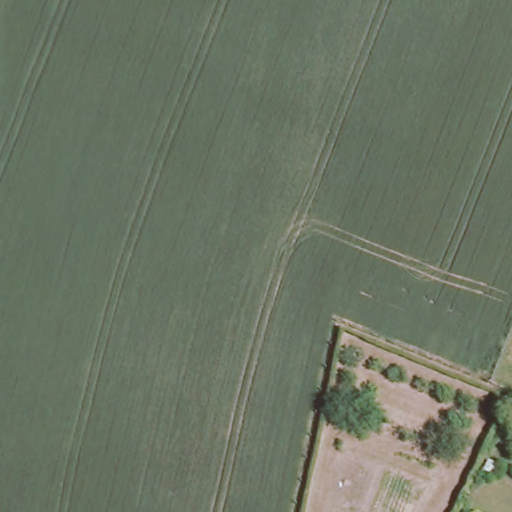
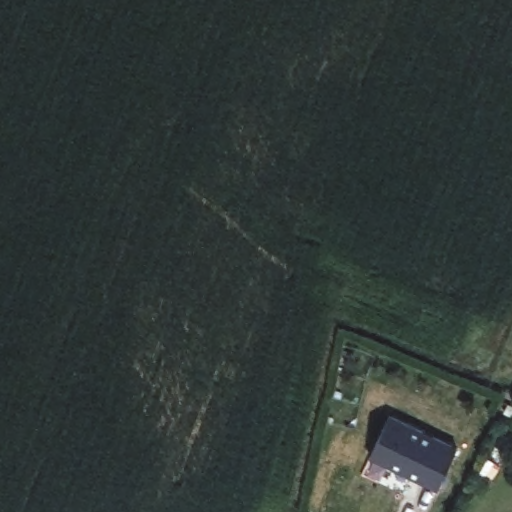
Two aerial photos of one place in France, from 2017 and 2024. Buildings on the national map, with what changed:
new [(457,445),(438,488),(370,456),(390,413),(457,445)]

